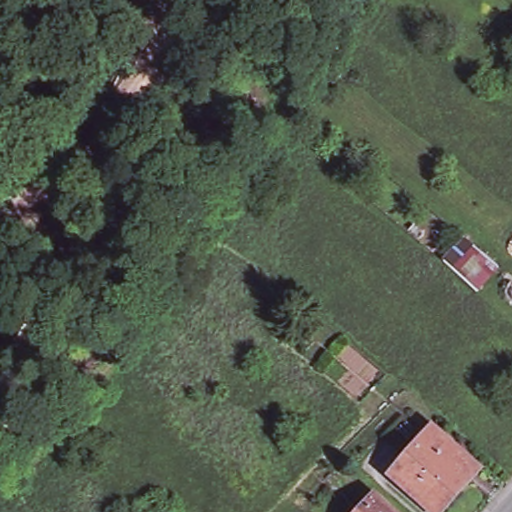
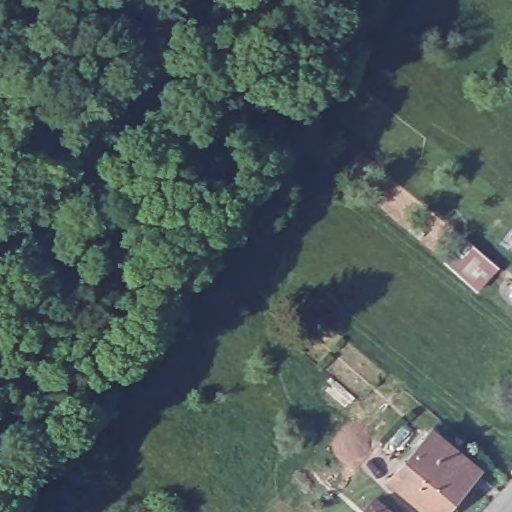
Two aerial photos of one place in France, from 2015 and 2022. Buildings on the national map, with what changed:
unchanged [(473,471),(464,480),(439,512),(427,512),(390,482),(429,435),(450,453),(473,471)]
unchanged [(385,512),(360,512),(371,500),(385,512)]

